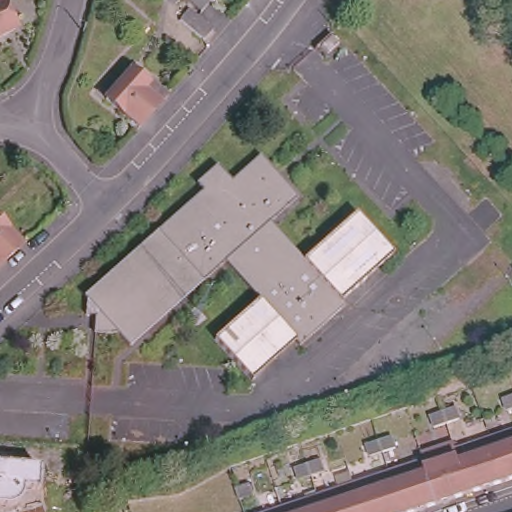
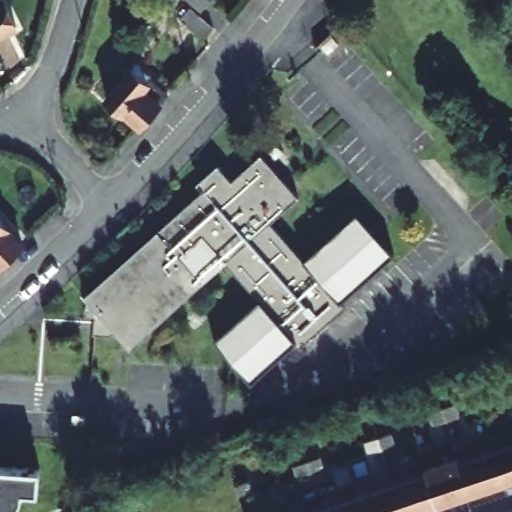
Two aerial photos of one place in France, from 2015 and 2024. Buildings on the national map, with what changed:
unchanged [(6,1),(17,25),(0,34),(0,0),(6,0),(6,1)]
unchanged [(165,0),(177,0),(172,5),(165,0)]
unchanged [(210,2),(202,12),(186,0),(207,0),(210,2)]
unchanged [(207,38),(185,21),(194,10),(215,26),(207,38)]
unchanged [(136,121),(103,92),(127,64),(144,77),(148,74),(165,88),(136,121)]
unchanged [(93,303),(81,290),(202,183),(197,178),(217,161),(229,175),(259,150),(296,191),(266,217),(299,254),(354,207),(391,251),(338,298),(342,304),(297,344),(292,339),(247,378),(209,334),(254,294),(221,256),(126,340),(112,327),(92,325),(93,303)]
unchanged [(0,264),(0,214),(25,242),(0,264)]
unchanged [(512,393),(512,405),(503,408),(491,413),(487,402),(499,397),(512,393)]
unchanged [(423,411),(437,406),(441,419),(427,424),(417,428),(413,415),(423,411)]
unchanged [(484,441),(512,432),(512,479),(498,483),(484,441)]
unchanged [(366,442),(380,436),(383,447),(369,452),(356,456),(353,446),(366,442)]
unchanged [(462,496),(448,453),(484,441),(498,483),(462,496)]
unchanged [(420,455),(445,446),(448,453),(462,496),(437,504),(422,462),(420,455)]
unchanged [(295,466),(309,461),(313,472),(299,476),(285,480),(283,470),(295,466)]
unchanged [(399,512),(387,474),(422,462),(437,504),(414,512),(399,512)]
unchanged [(35,488),(22,487),(21,493),(19,498),(15,502),(9,505),(2,506),(0,506),(0,464),(39,467),(35,488)]
unchanged [(387,474),(399,512),(360,512),(351,486),(387,474)]
unchanged [(226,490),(239,485),(243,496),(230,500),(226,490)]
unchanged [(351,486),(360,512),(320,512),(316,498),(351,486)]
unchanged [(316,498),(320,512),(281,512),(281,510),(316,498)]
unchanged [(281,512),(275,512),(281,510),(281,512)]

